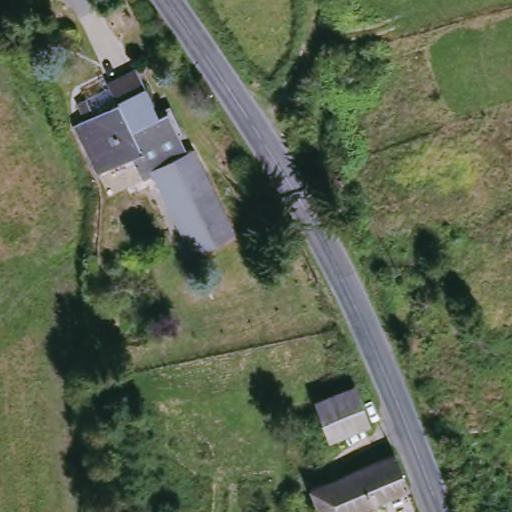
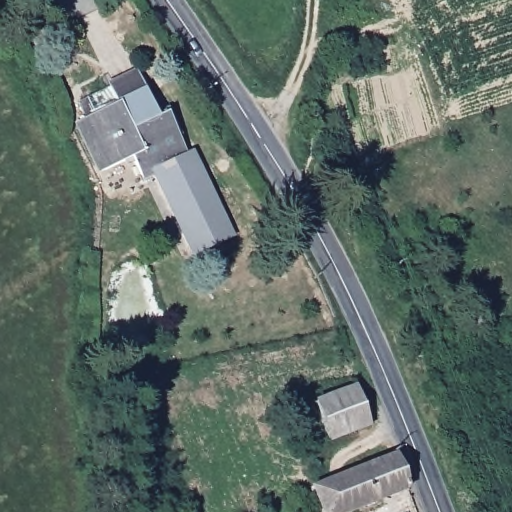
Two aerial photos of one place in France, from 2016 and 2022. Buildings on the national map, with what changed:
unchanged [(87,117),(82,100),(109,89),(107,85),(138,70),(156,96),(165,114),(173,111),(180,126),(191,154),(197,149),(239,236),(195,254),(154,177),(145,180),(133,158),(97,173),(77,121),(87,117)]
unchanged [(375,428),(335,444),(318,407),(358,388),(375,428)]
unchanged [(413,488),(352,512),(323,512),(313,488),(400,454),(413,488)]

